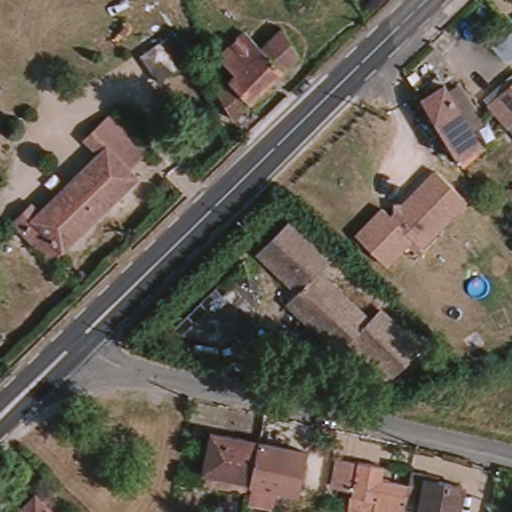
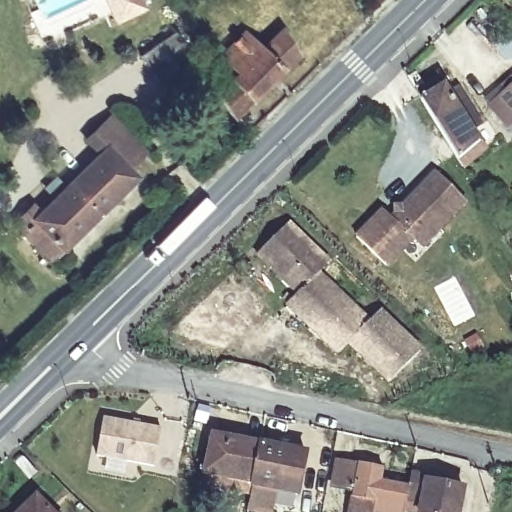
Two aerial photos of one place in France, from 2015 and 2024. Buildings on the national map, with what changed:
unchanged [(192,61),(158,85),(138,55),(171,31),(192,61)]
unchanged [(220,84),(228,78),(233,74),(223,58),(249,37),(261,49),(281,34),(297,59),(246,104),(231,116),(220,84)]
unchanged [(509,131),(486,104),(512,81),(512,135),(509,131)]
unchanged [(445,87),(481,143),(467,153),(472,163),(461,169),(420,102),(445,87)]
unchanged [(34,211),(100,149),(89,136),(109,116),(133,141),(143,151),(128,165),(136,172),(45,262),(8,224),(27,204),(34,211)]
unchanged [(416,239),(389,266),(359,237),(386,209),(394,218),(399,214),(406,213),(407,205),(439,170),(469,199),(443,228),(424,247),(416,239)]
unchanged [(374,319),(386,309),(426,349),(394,380),(355,339),(344,351),(293,299),(304,289),(265,248),(296,218),(336,259),(326,269),(374,319)]
unchanged [(231,343),(178,327),(251,257),(266,309),(231,343)]
new [(103,414),(160,422),(155,462),(98,452),(103,414)]
unchanged [(203,464),(211,431),(258,443),(251,474),(203,464)]
unchanged [(246,504),(249,486),(251,474),(258,443),(301,453),(293,496),(269,491),(266,509),(246,504)]
unchanged [(401,512),(347,512),(351,486),(336,482),(340,461),(379,469),(378,483),(405,488),(404,499),(401,512)]
unchanged [(408,489),(412,474),(458,487),(452,512),(419,512),(422,504),(404,499),(405,488),(408,489)]
unchanged [(53,512),(25,512),(39,498),(53,512)]

